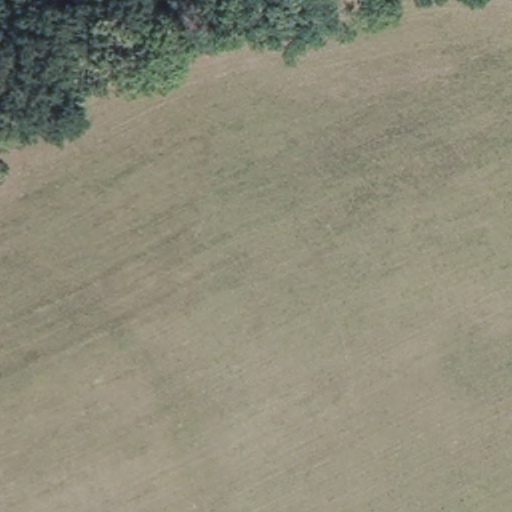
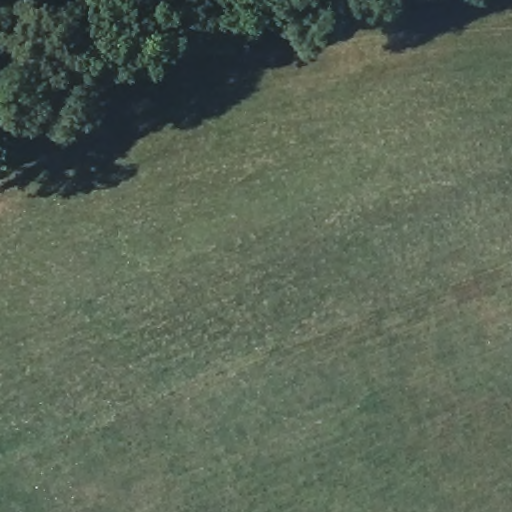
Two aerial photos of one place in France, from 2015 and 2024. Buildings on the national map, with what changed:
[]

